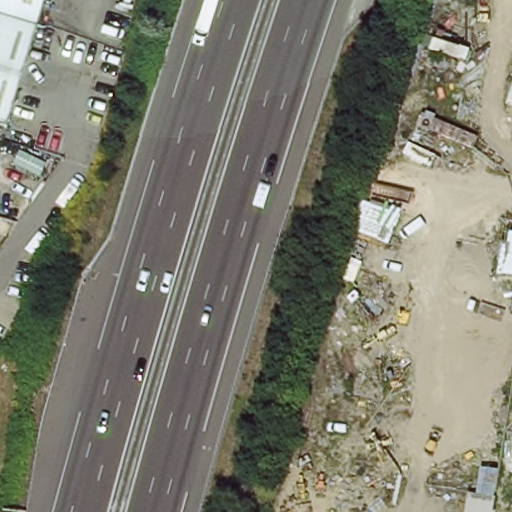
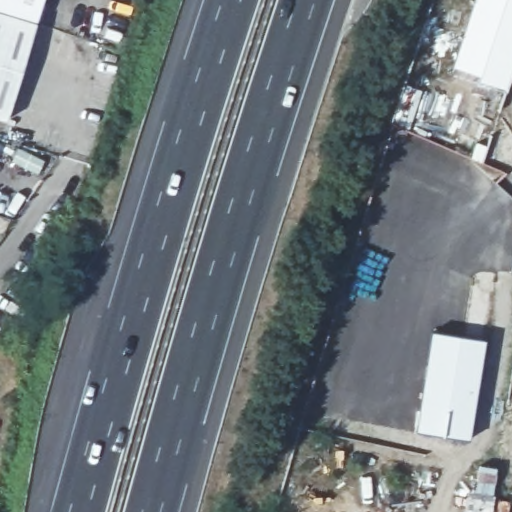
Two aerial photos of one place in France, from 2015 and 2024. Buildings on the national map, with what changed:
unchanged [(33,24),(0,15),(0,0),(38,0),(33,24)]
new [(505,89),(477,79),(478,76),(451,66),(472,0),(512,0),(512,66),(505,89)]
unchanged [(33,24),(7,116),(0,114),(0,15),(33,24)]
new [(511,246),(512,234),(512,246),(511,246)]
new [(417,432),(434,335),(485,342),(469,441),(417,432)]
demolished [(457,419),(503,428),(497,462),(448,452),(457,419)]
unchanged [(477,494),(482,466),(499,470),(492,512),(463,512),(467,492),(477,494)]

